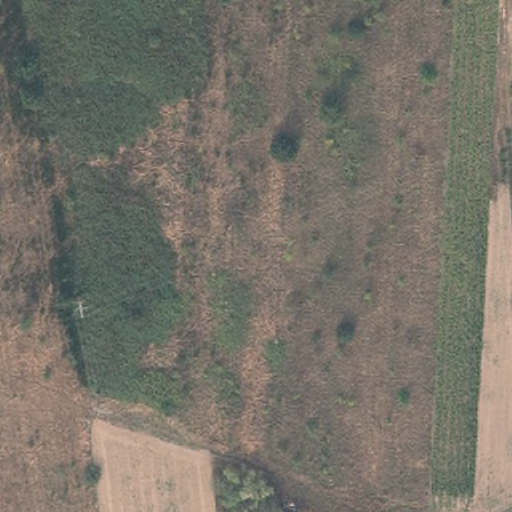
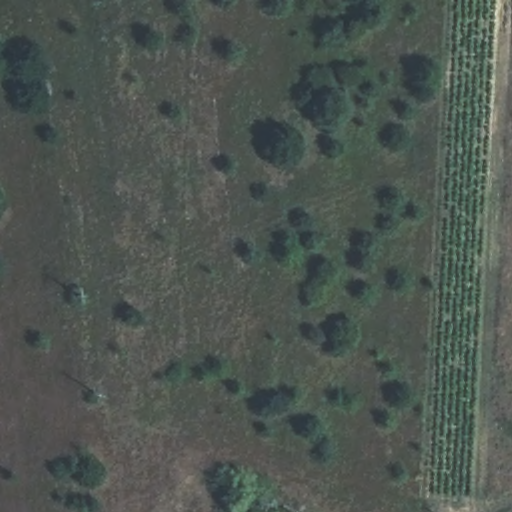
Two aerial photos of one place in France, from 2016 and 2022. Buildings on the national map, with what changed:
unchanged [(277,511),(279,512),(276,512),(277,511)]

